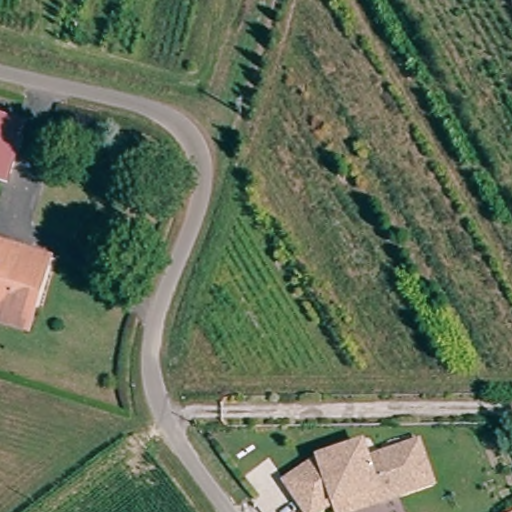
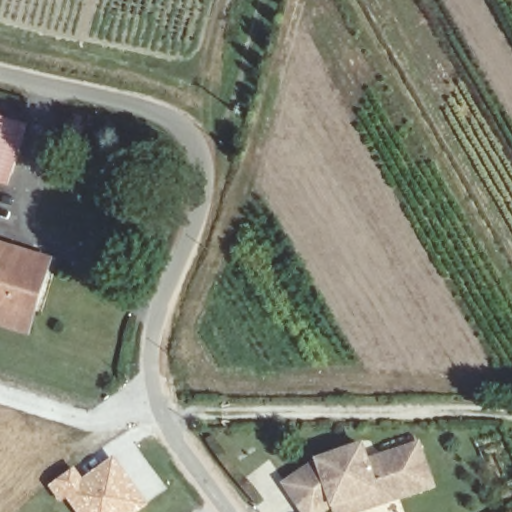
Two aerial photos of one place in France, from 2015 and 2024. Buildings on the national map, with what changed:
unchanged [(9,184),(0,181),(0,121),(23,127),(9,184)]
unchanged [(0,321),(0,246),(21,251),(51,259),(50,265),(39,306),(33,330),(0,321)]
unchanged [(321,512),(300,512),(283,487),(321,458),(364,445),(369,461),(420,446),(432,488),(380,503),(350,512),(337,512),(333,501),(321,512)]
new [(83,478),(113,456),(149,504),(138,512),(75,512),(65,499),(59,503),(47,487),(74,467),(83,478)]

